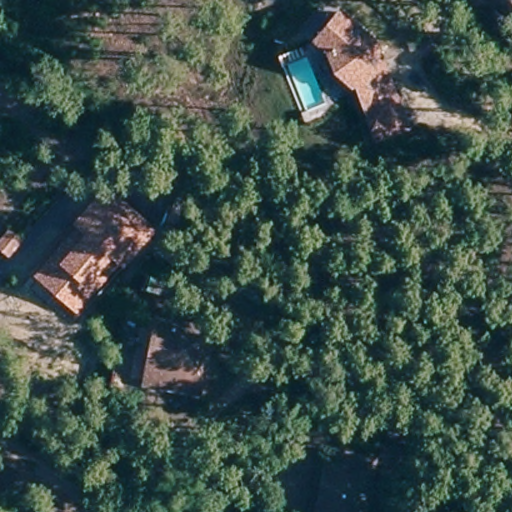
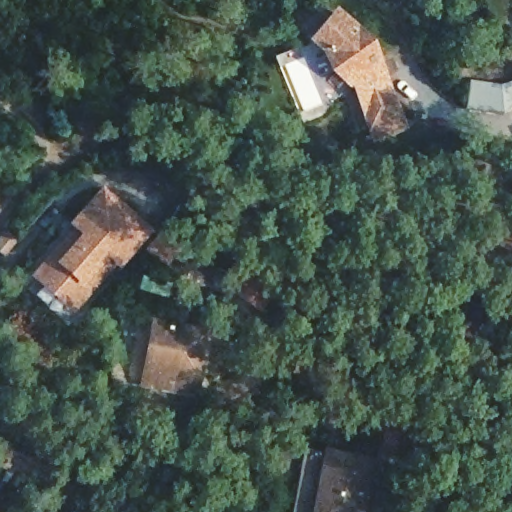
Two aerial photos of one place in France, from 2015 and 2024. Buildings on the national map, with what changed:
unchanged [(348,72),(344,74),(327,60),(320,41),(307,30),(330,3),(365,33),(379,70),(353,87),(348,72)]
unchanged [(379,70),(397,117),(369,127),(353,87),(379,70)]
new [(501,85),(512,81),(512,108),(505,115),(465,110),(469,80),(501,85)]
unchanged [(31,277),(74,229),(69,225),(103,185),(155,229),(121,270),(117,267),(75,314),(31,277)]
unchanged [(145,367),(155,325),(205,335),(194,390),(162,385),(144,381),(145,367)]
unchanged [(386,468),(372,466),(375,452),(390,455),(386,468)]
unchanged [(365,467),(361,485),(358,501),(356,512),(306,512),(317,457),(365,467)]

